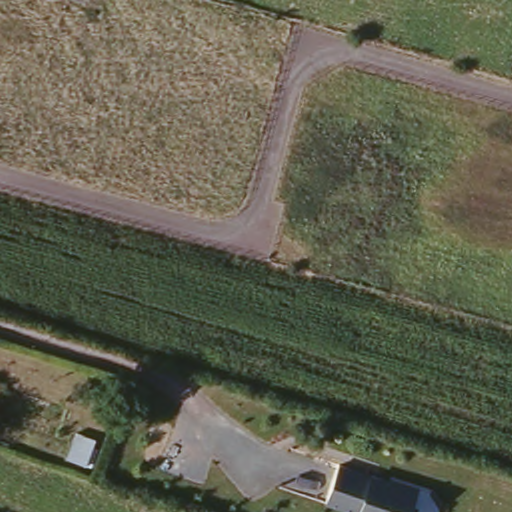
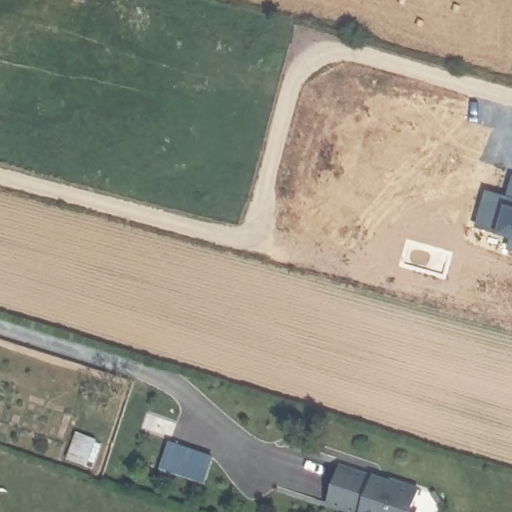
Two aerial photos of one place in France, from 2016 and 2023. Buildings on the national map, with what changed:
new [(505,195),(511,175),(512,175),(512,237),(472,227),(483,190),(505,195)]
new [(512,241),(512,248),(508,247),(512,241)]
unchanged [(101,436),(91,462),(72,455),(81,429),(101,436)]
new [(167,441),(212,456),(203,483),(159,468),(167,441)]
unchanged [(376,475),(393,480),(395,475),(423,485),(418,501),(421,507),(419,512),(362,512),(363,510),(331,498),(343,460),(377,471),(376,475)]

